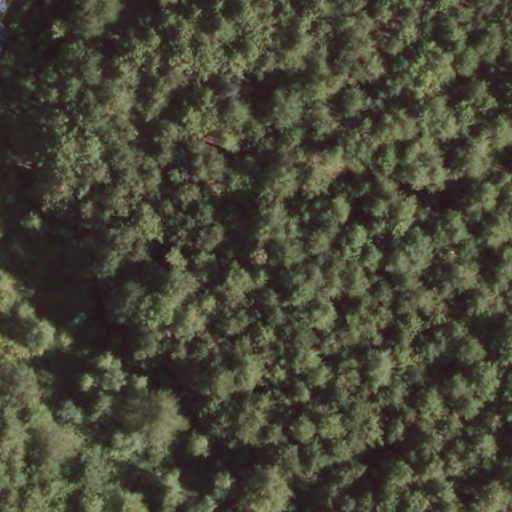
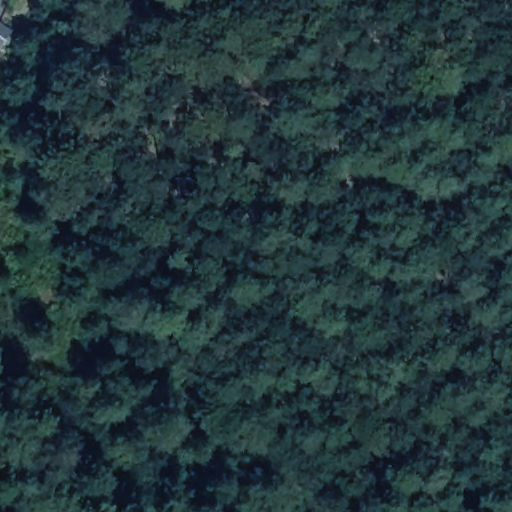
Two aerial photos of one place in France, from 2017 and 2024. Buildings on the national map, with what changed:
unchanged [(0,40),(0,27),(6,32),(0,40)]

